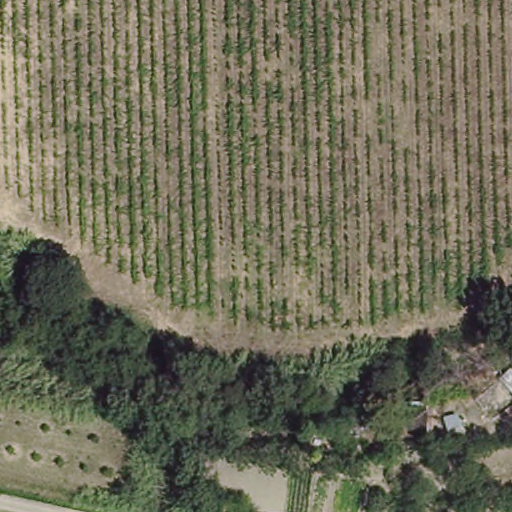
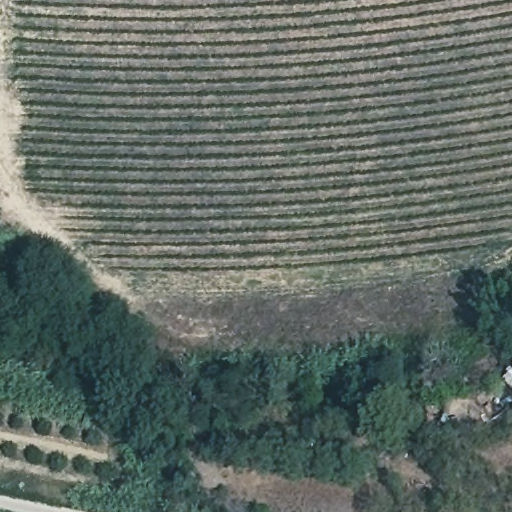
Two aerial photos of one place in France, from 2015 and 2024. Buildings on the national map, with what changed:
unchanged [(512,376),(512,387),(506,381),(512,376)]

